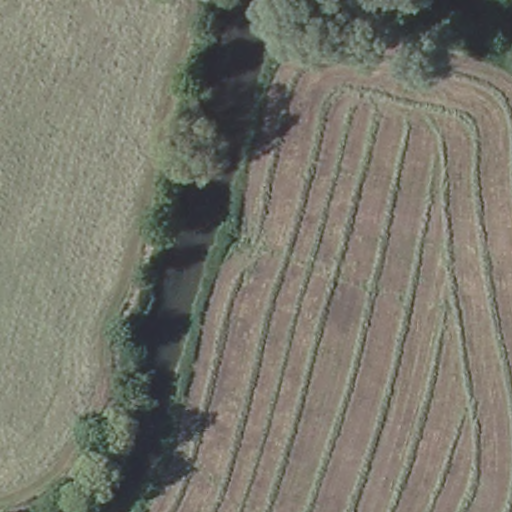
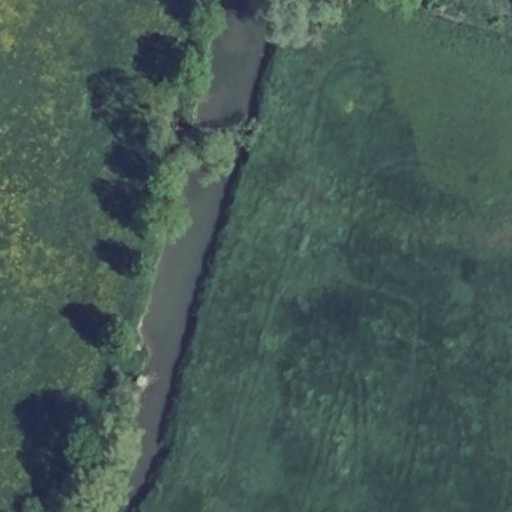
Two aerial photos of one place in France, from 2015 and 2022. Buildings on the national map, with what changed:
[]

